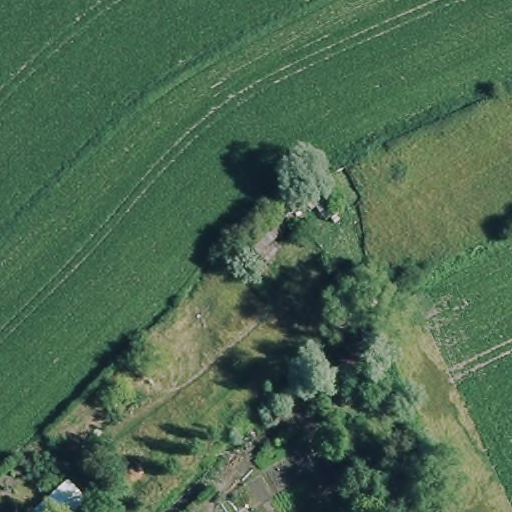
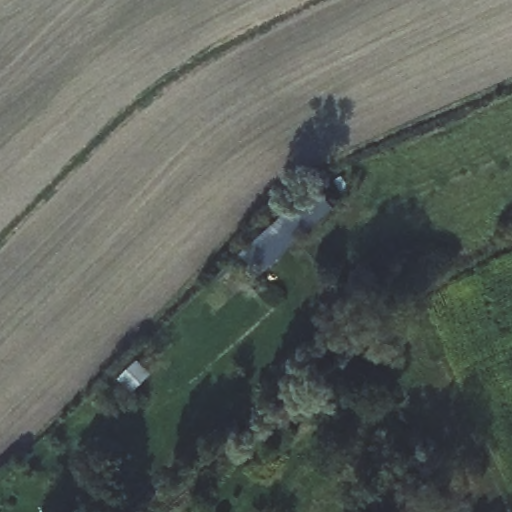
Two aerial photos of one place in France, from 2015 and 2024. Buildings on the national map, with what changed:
unchanged [(280,209),(312,187),(327,213),(315,222),(307,208),(290,219),(294,227),(270,249),(277,255),(265,267),(245,247),(280,209)]

